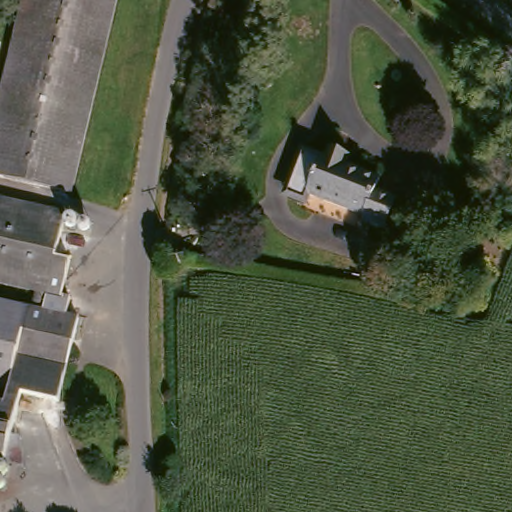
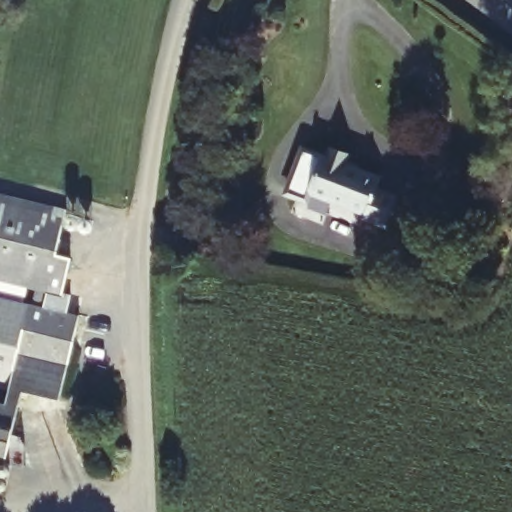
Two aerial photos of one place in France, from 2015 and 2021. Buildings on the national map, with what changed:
demolished [(73,193),(0,176),(0,97),(22,0),(119,0),(73,193)]
unchanged [(314,150),(314,149),(321,152),(325,143),(346,152),(343,160),(376,173),(371,186),(388,193),(376,222),(354,214),(356,209),(299,186),(296,193),(278,186),(285,169),(296,143),(314,150)]
unchanged [(0,403),(4,404),(6,390),(28,306),(31,307),(35,289),(0,281),(0,196),(66,211),(56,255),(71,259),(61,296),(45,292),(41,308),(81,318),(61,401),(23,394),(5,464),(0,463),(0,403)]
unchanged [(446,262),(436,288),(404,275),(414,249),(446,262)]
unchanged [(0,298),(26,305),(6,390),(0,389),(0,298)]

